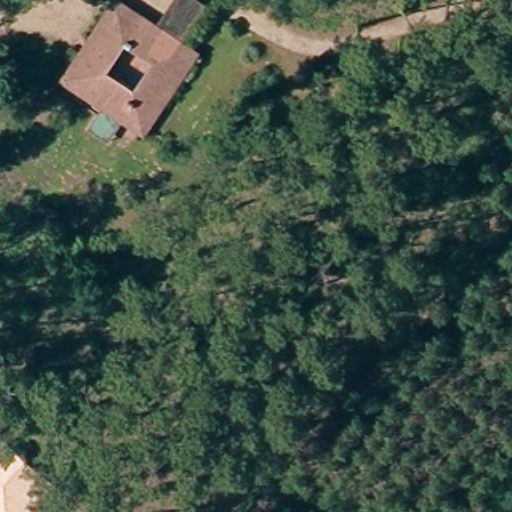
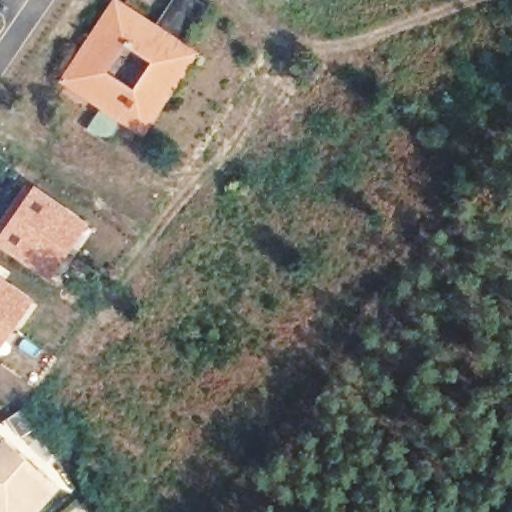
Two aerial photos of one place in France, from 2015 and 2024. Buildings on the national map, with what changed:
unchanged [(194,0),(204,6),(172,51),(147,33),(170,0),(194,0)]
unchanged [(115,130),(99,149),(90,142),(96,137),(85,127),(99,107),(101,104),(62,76),(110,6),(147,33),(172,51),(181,58),(132,127),(117,116),(114,120),(110,127),(115,130)]
new [(90,222),(50,282),(0,247),(0,230),(32,182),(90,222)]
new [(0,348),(0,275),(35,299),(0,348)]
new [(23,405),(37,425),(20,437),(6,418),(23,405)]
unchanged [(0,443),(2,440),(59,488),(37,512),(0,512),(0,443)]

